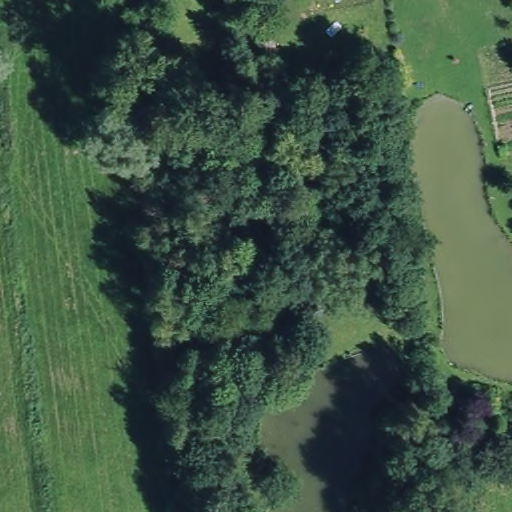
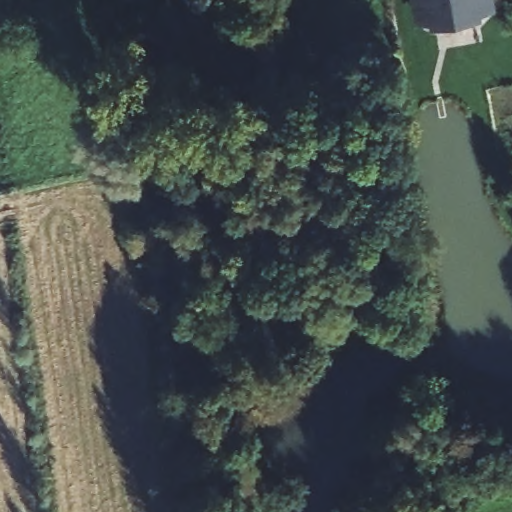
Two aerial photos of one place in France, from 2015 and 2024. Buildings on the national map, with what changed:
new [(496,10),(415,21),(413,0),(495,0),(496,10)]
unchanged [(261,43),(278,41),(282,72),(265,76),(261,43)]

